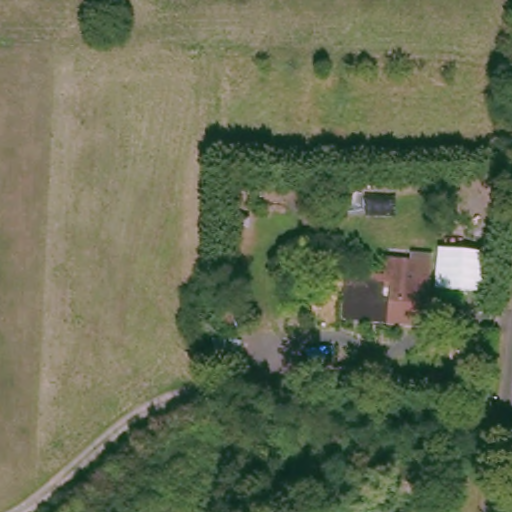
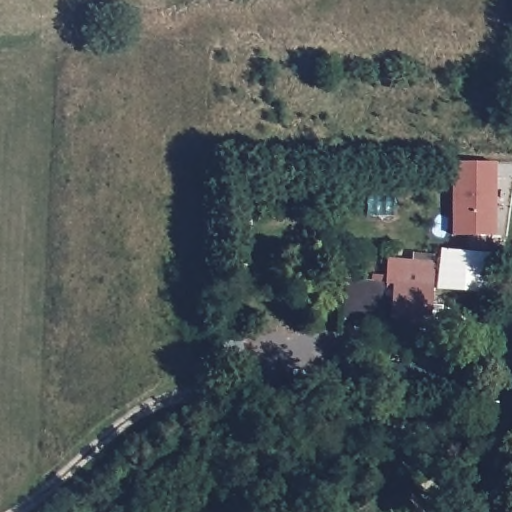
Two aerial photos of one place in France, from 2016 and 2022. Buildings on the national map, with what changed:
new [(449,234),(452,162),(496,164),(495,237),(449,234)]
unchanged [(341,317),(346,280),(365,282),(366,272),(383,274),(386,255),(409,257),(410,249),(438,252),(438,247),(490,251),(485,292),(430,286),(423,326),(388,322),(341,317)]
unchanged [(367,390),(350,390),(350,368),(366,368),(367,390)]

